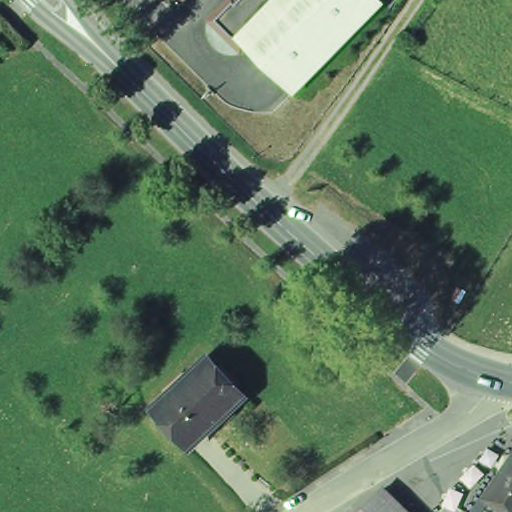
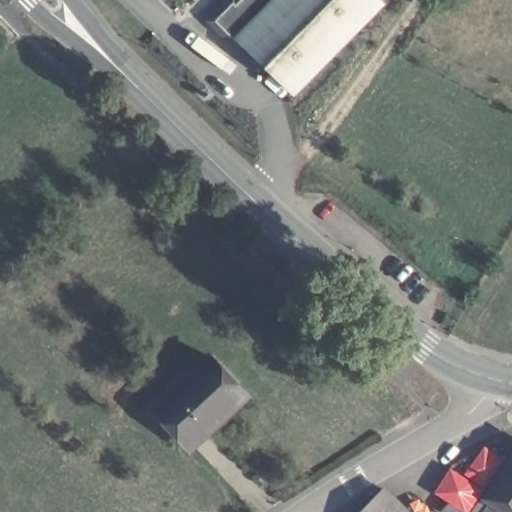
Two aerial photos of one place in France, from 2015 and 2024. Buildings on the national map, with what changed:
unchanged [(384,0),(385,1),(295,94),(244,45),(239,51),(207,19),(223,0),(384,0)]
unchanged [(251,401),(195,453),(157,414),(213,361),(251,401)]
unchanged [(512,456),(512,512),(505,512),(483,497),(512,456)]
unchanged [(382,489),(406,512),(361,512),(382,489)]

